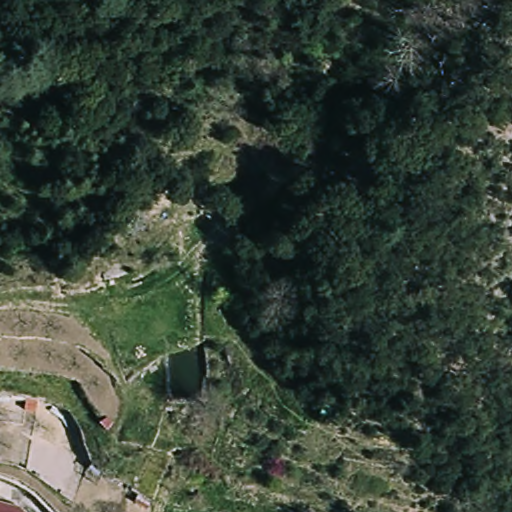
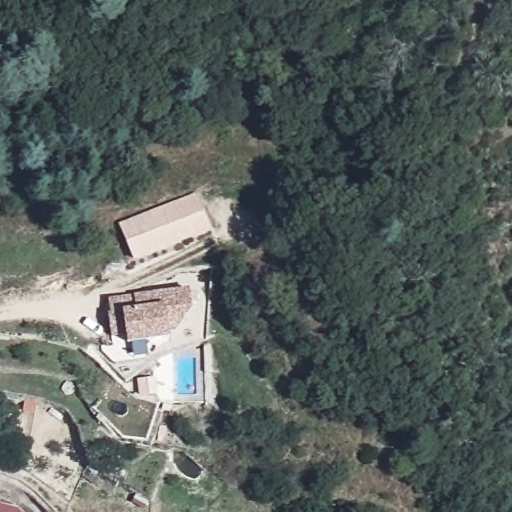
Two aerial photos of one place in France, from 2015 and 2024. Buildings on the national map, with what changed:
new [(134,263),(117,226),(196,193),(211,232),(134,263)]
new [(197,306),(191,306),(169,341),(126,346),(125,339),(113,341),(109,298),(189,288),(189,292),(196,292),(197,306)]
unchanged [(0,512),(0,510),(9,512),(0,512)]

